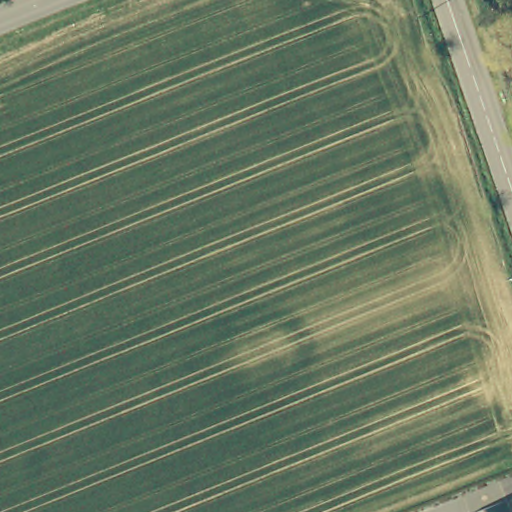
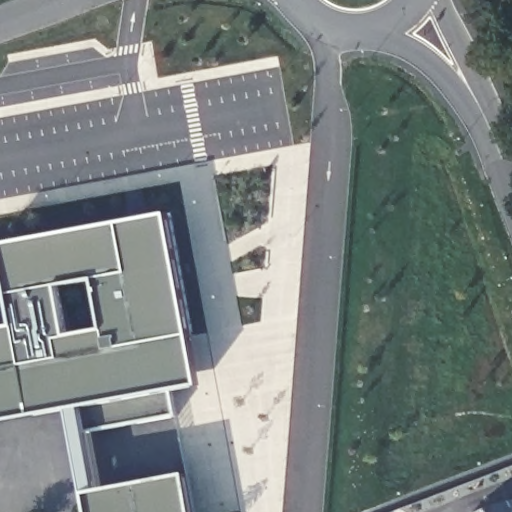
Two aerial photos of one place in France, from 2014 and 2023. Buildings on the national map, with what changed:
new [(172,388),(176,417),(75,437),(70,408),(0,421),(0,327),(13,325),(0,254),(0,243),(170,212),(201,384),(172,388)]
new [(192,512),(92,512),(89,492),(185,475),(192,512)]
unchanged [(512,512),(471,512),(510,499),(512,505),(512,512)]

